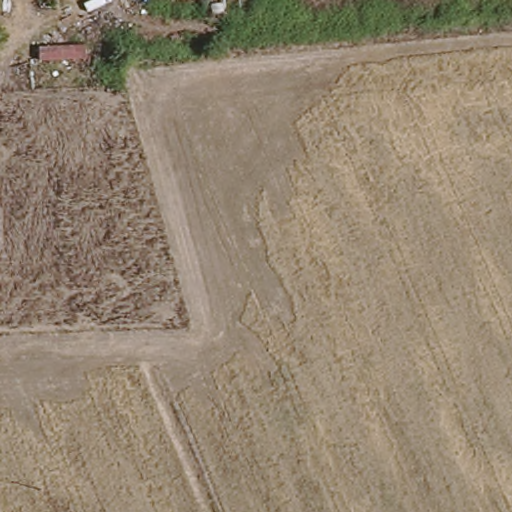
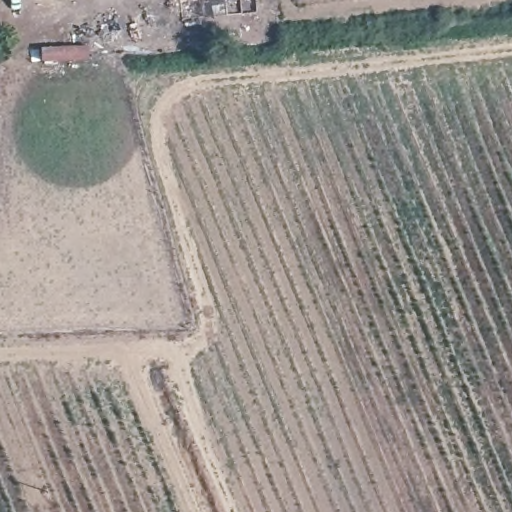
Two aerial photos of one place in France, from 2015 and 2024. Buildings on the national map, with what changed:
unchanged [(40,46),(96,41),(99,62),(42,66),(40,46)]

